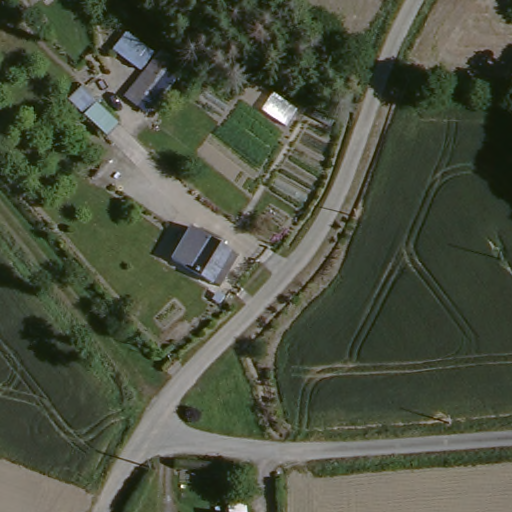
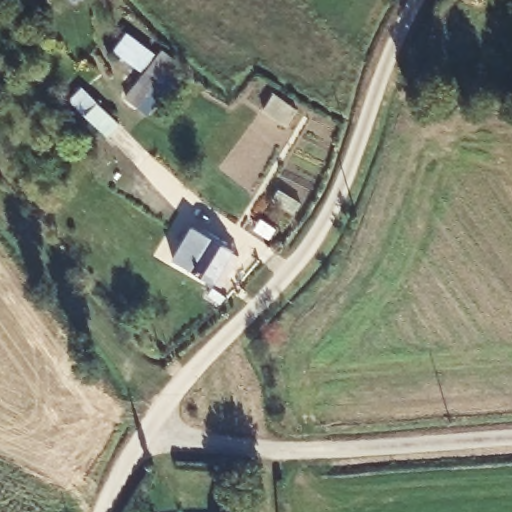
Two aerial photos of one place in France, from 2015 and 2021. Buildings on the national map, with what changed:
unchanged [(188,70),(150,117),(125,98),(144,74),(114,50),(131,28),(163,50),(188,70)]
unchanged [(55,125),(64,115),(70,109),(92,128),(84,137),(76,146),(55,125)]
unchanged [(245,250),(227,283),(222,280),(201,268),(180,256),(197,227),(200,223),(221,236),(240,247),(245,250)]
unchanged [(254,512),(234,512),(254,510),(254,512)]

